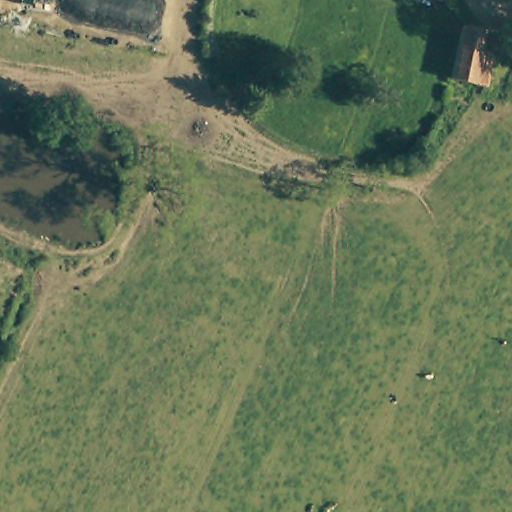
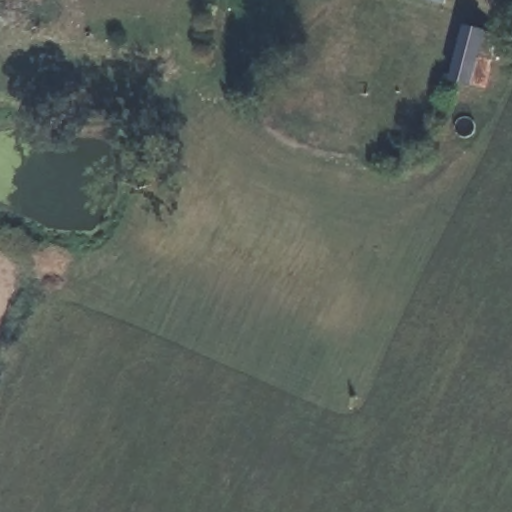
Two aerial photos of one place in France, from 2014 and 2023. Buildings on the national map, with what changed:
unchanged [(447,88),(441,87),(453,34),(472,38),(487,43),(477,93),(463,91),(447,88)]

